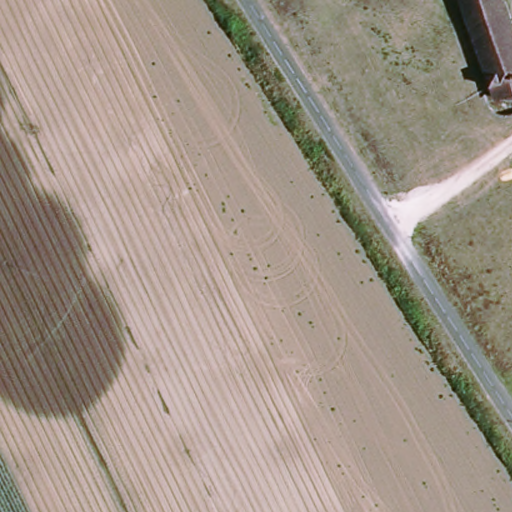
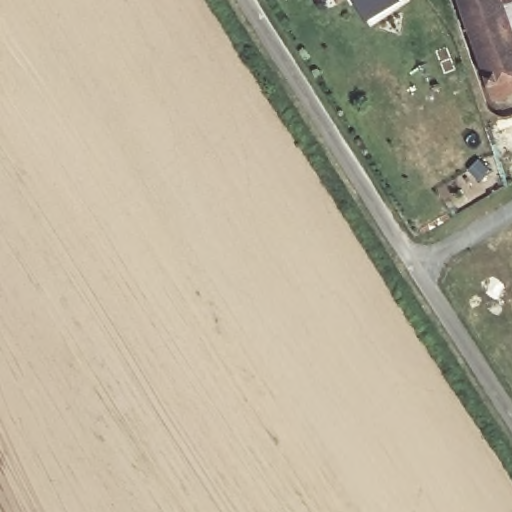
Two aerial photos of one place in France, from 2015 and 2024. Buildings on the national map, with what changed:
new [(402,0),(370,20),(356,0),(402,0)]
unchanged [(508,93),(503,79),(488,85),(480,64),(458,0),(499,0),(512,37),(512,92),(508,93)]

